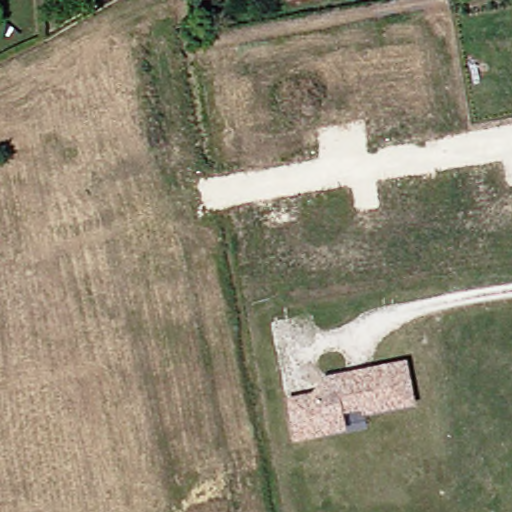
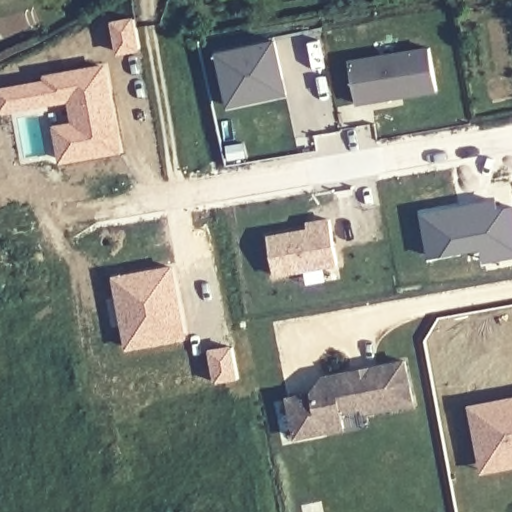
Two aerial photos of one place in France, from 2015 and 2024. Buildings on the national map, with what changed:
new [(111,21),(135,16),(141,50),(117,54),(111,21)]
new [(250,96),(225,101),(214,49),(270,37),(279,74),(282,89),(250,96)]
new [(351,53),(431,40),(438,82),(358,96),(351,53)]
new [(72,121),(69,101),(0,113),(0,88),(45,79),(44,75),(109,63),(124,152),(60,163),(53,125),(72,121)]
new [(420,211),(496,198),(498,208),(512,205),(512,257),(483,262),(481,249),(429,257),(420,211)]
new [(327,214),(335,258),(272,269),(265,232),(311,223),(310,217),(327,214)]
new [(310,217),(311,223),(305,224),(303,218),(310,217)]
new [(113,275),(174,264),(188,338),(127,350),(113,275)]
new [(210,348),(232,344),(239,377),(216,382),(210,348)]
unchanged [(415,404),(367,414),(365,409),(344,413),(346,431),(295,440),(286,396),(311,392),(323,375),(406,359),(415,404)]
new [(476,453),(466,405),(512,396),(512,446),(476,453)]
new [(512,446),(512,463),(479,470),(476,453),(512,446)]

